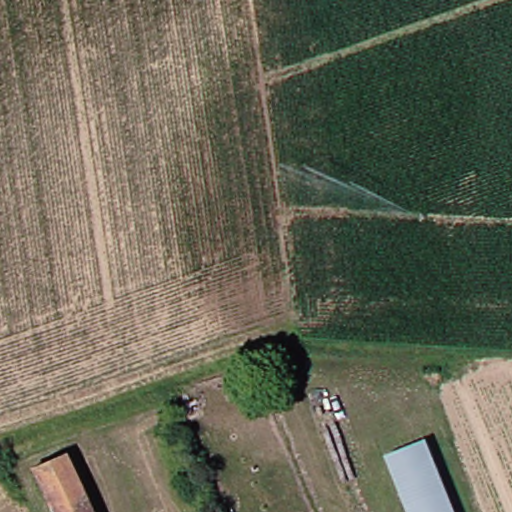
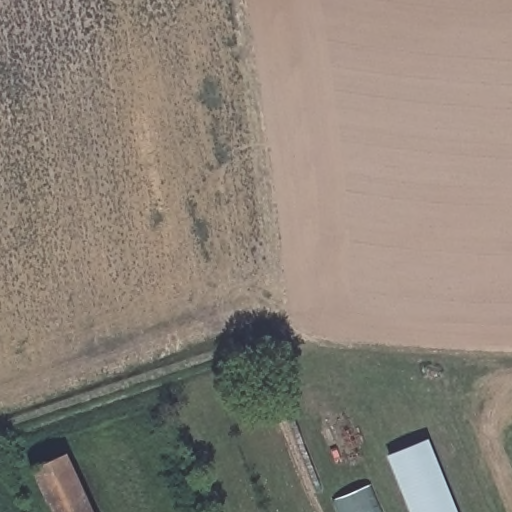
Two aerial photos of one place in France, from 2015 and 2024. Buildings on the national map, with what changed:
unchanged [(414,512),(390,455),(429,440),(459,512),(414,512)]
unchanged [(58,512),(50,496),(82,481),(97,512),(58,512)]
new [(378,512),(340,512),(335,501),(368,488),(378,512)]

